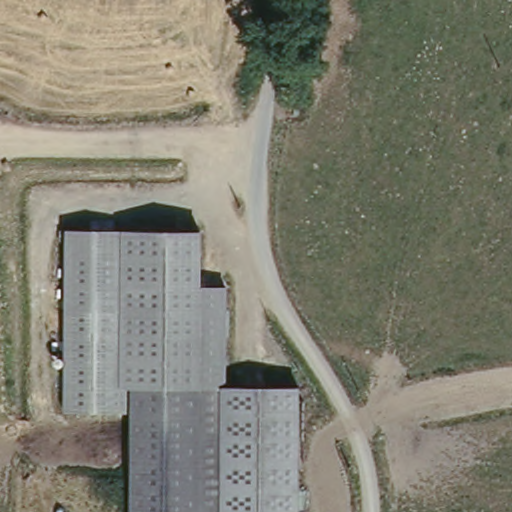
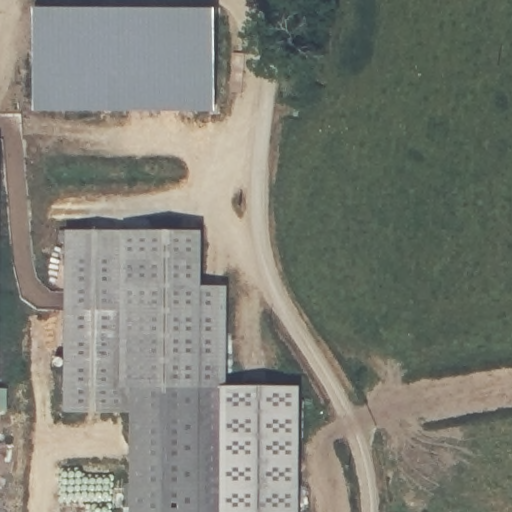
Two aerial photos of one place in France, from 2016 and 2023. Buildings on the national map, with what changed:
new [(37,11),(211,11),(212,109),(35,111),(37,11)]
unchanged [(217,512),(126,512),(127,408),(60,407),(62,226),(195,228),(194,284),(221,284),(221,385),(217,385),(217,503),(217,512)]
unchanged [(217,503),(217,385),(221,385),(305,385),(304,512),(217,512),(217,503)]

